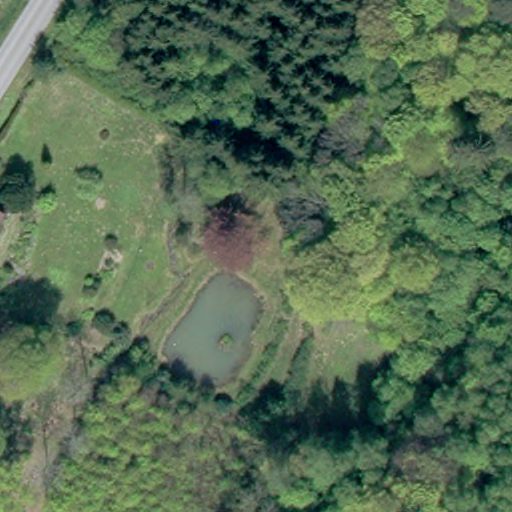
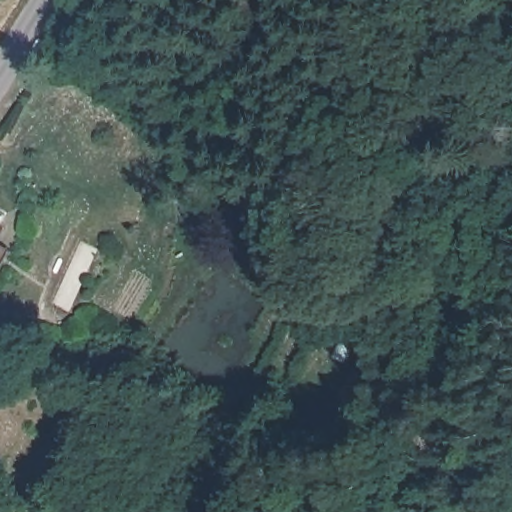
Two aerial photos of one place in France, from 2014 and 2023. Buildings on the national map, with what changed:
unchanged [(0,228),(0,211),(7,215),(0,228)]

